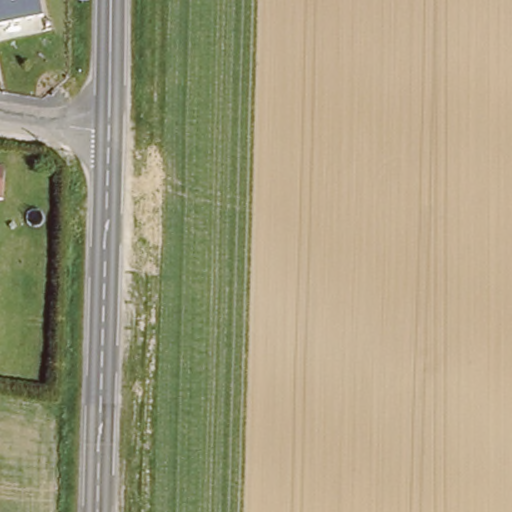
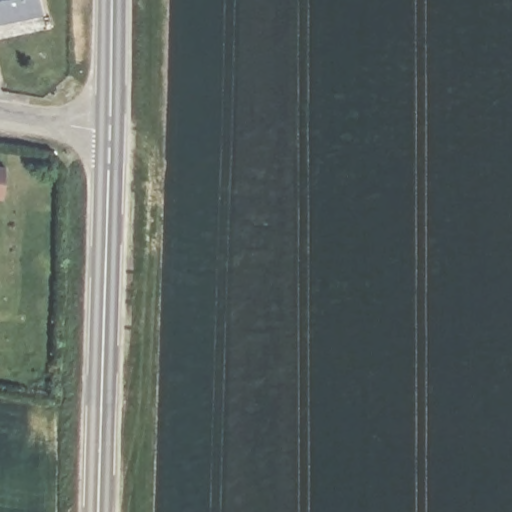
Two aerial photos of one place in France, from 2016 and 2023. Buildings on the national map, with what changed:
unchanged [(0,22),(0,0),(34,0),(37,14),(0,22)]
unchanged [(2,199),(0,199),(0,166),(5,167),(2,199)]

